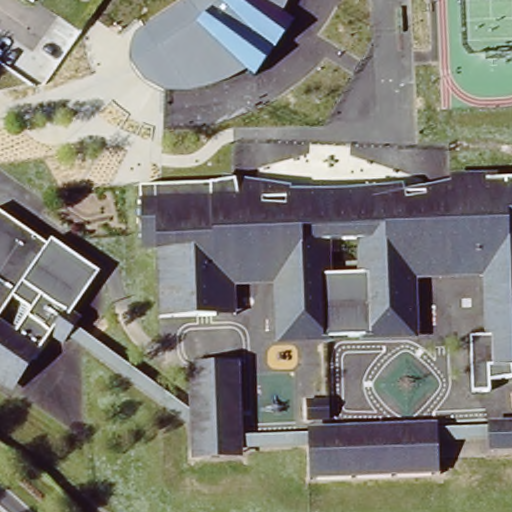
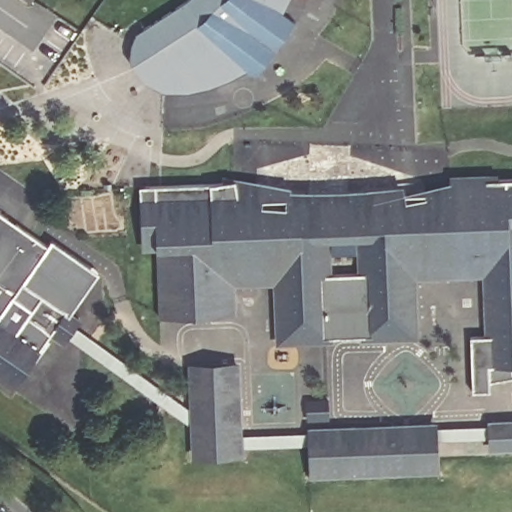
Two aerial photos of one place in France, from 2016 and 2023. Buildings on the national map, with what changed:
unchanged [(40,2),(36,0),(42,0),(40,2)]
unchanged [(134,70),(130,65),(128,57),(128,50),(130,42),(134,35),(143,28),(178,6),(187,0),(290,0),(282,15),(292,22),(255,76),(247,70),(239,74),(230,80),(218,84),(207,87),(195,90),(187,91),(175,91),(165,89),(159,88),(151,85),(145,80),(140,76),(134,70)]
unchanged [(146,252),(146,239),(143,193),(240,186),(292,191),(355,190),(373,190),(411,185),(411,191),(432,188),(453,186),(453,178),(512,173),(512,381),(496,381),(495,394),(477,394),(477,335),(490,334),(490,276),(445,278),(445,266),(420,268),(423,330),(377,333),(377,339),(323,342),(322,336),(284,337),(282,281),(243,283),(242,319),(224,320),(167,323),(163,250),(146,252)]
unchanged [(16,223),(25,229),(56,250),(60,243),(105,273),(100,280),(77,316),(85,321),(80,329),(71,340),(67,345),(60,341),(33,380),(5,395),(0,391),(0,213),(16,223)]
unchanged [(95,340),(201,415),(202,431),(90,353),(71,340),(80,329),(95,340)]
unchanged [(320,448),(248,450),(248,457),(203,460),(202,431),(201,415),(200,373),(246,368),(248,439),(320,437),(320,429),(435,425),(438,426),(498,424),(498,418),(512,418),(512,447),(498,447),(498,436),(438,438),(439,471),(320,475),(320,448)]

